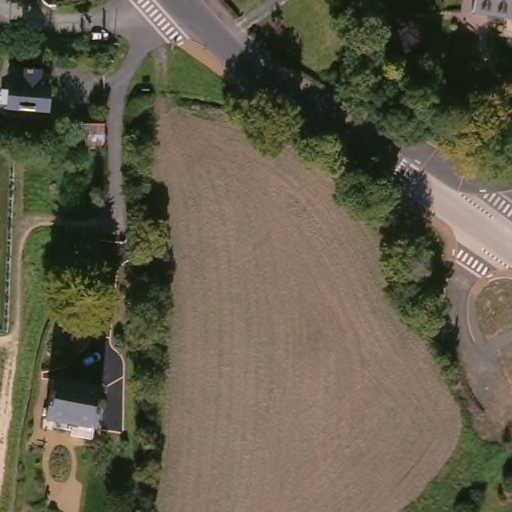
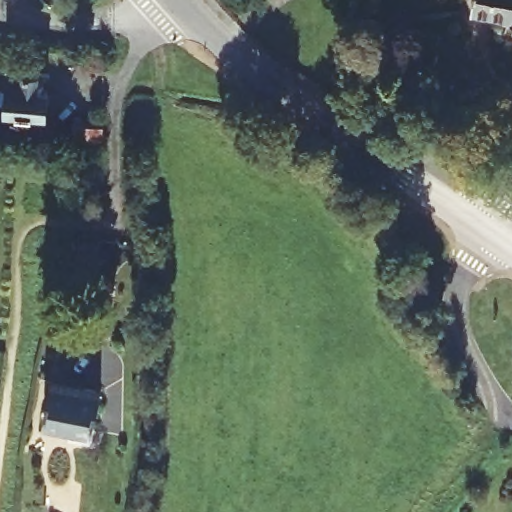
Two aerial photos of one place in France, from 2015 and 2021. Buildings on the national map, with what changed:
unchanged [(472,0),(512,0),(512,19),(470,13),(472,0)]
unchanged [(13,69),(40,69),(41,87),(51,87),(49,112),(12,110),(13,69)]
unchanged [(61,157),(60,126),(89,125),(88,149),(87,157),(61,157)]
unchanged [(51,378),(100,387),(94,427),(44,419),(51,378)]

